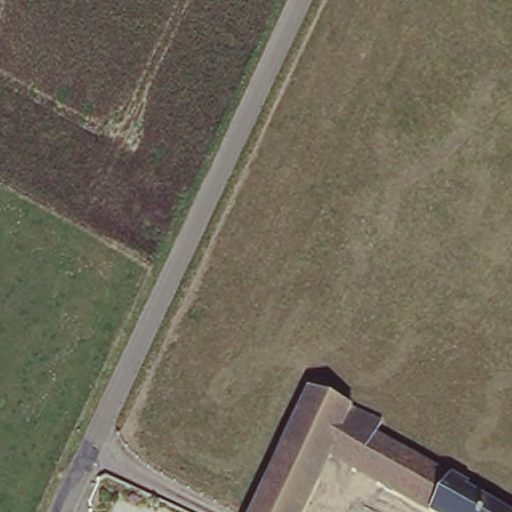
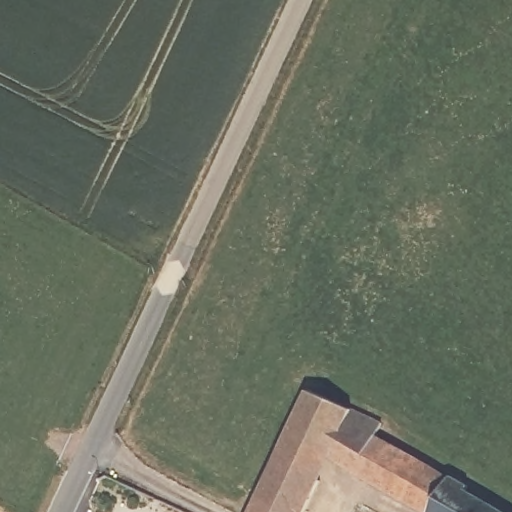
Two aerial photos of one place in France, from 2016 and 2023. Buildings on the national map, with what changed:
unchanged [(462,489),(504,512),(424,512),(406,502),(325,460),(302,512),(248,512),(285,427),(304,386),(375,424),(368,438),(444,479),(445,479),(447,473),(465,484),(462,489)]

